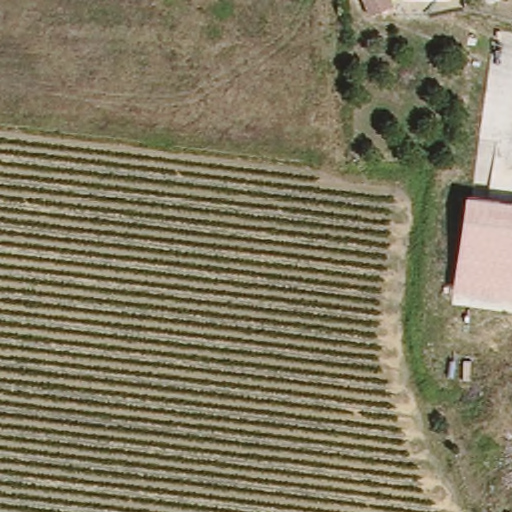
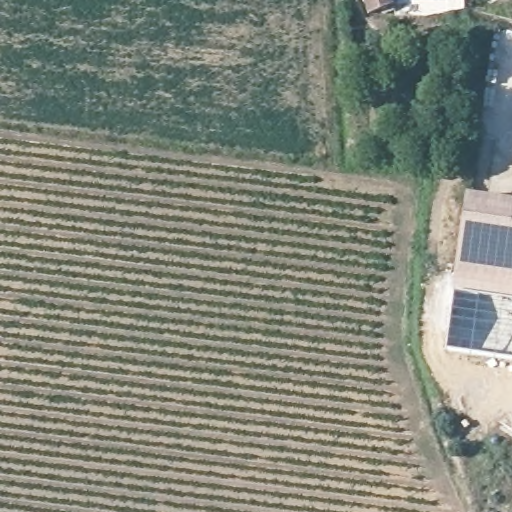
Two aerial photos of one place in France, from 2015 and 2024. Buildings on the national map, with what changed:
new [(369,15),(363,0),(391,0),(393,5),(369,15)]
unchanged [(467,195),(512,201),(512,297),(453,289),(459,245),(467,195)]
new [(446,350),(453,289),(512,297),(512,359),(446,350)]

